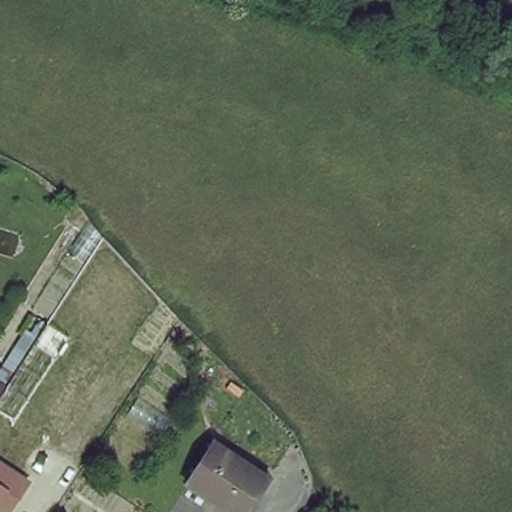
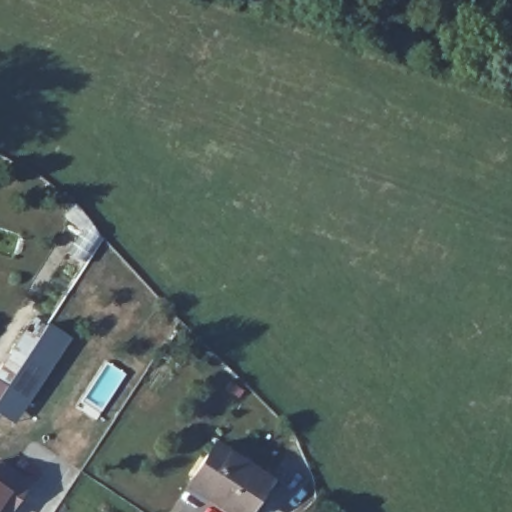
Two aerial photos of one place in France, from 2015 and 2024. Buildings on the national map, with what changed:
new [(30,332),(38,318),(46,321),(70,337),(13,422),(0,414),(0,365),(25,329),(30,332)]
unchanged [(215,444),(268,474),(271,475),(248,512),(239,512),(193,482),(215,444)]
unchanged [(9,512),(0,512),(0,461),(30,481),(9,512)]

